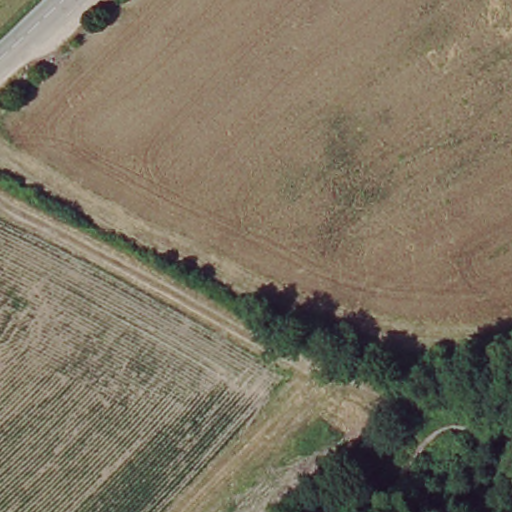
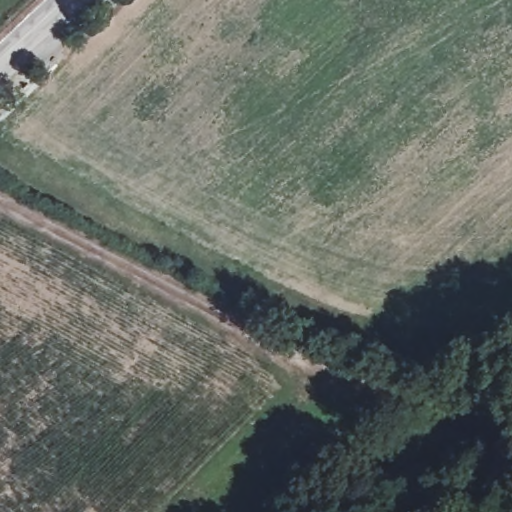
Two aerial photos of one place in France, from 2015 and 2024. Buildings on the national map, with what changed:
[]

